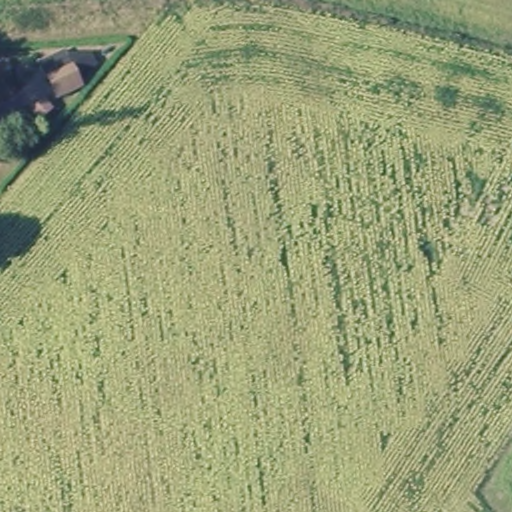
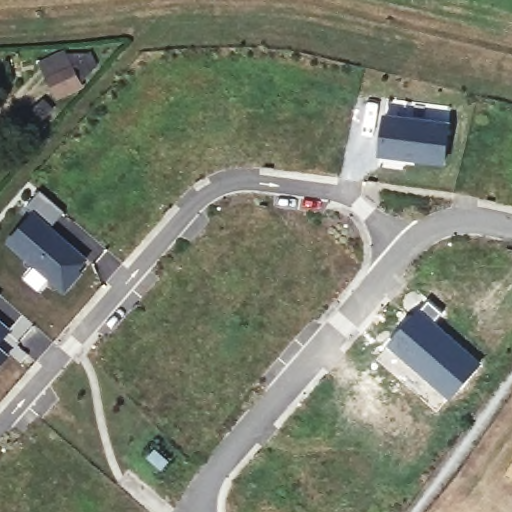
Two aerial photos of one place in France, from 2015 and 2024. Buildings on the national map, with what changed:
unchanged [(66,91),(51,63),(72,52),(87,79),(66,91)]
new [(385,114),(430,118),(431,109),(445,111),(443,119),(452,121),(445,166),(378,155),(385,114)]
demolished [(437,245),(490,155),(512,169),(512,181),(467,259),(437,245)]
new [(32,208),(28,205),(40,190),(65,211),(53,225),(92,261),(65,293),(48,280),(39,290),(24,277),(32,266),(5,242),(32,208)]
new [(2,297),(0,299),(0,295),(2,297)]
new [(428,299),(443,312),(435,321),(482,362),(447,400),(386,347),(428,299)]
new [(13,330),(9,334),(27,353),(20,362),(12,355),(0,369),(0,318),(13,330)]
new [(386,347),(447,400),(436,411),(376,359),(386,347)]

